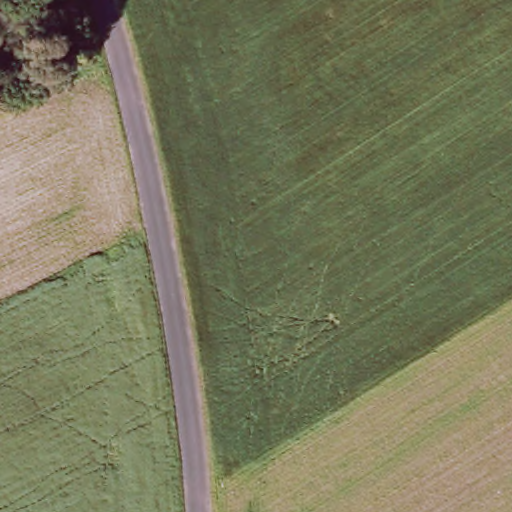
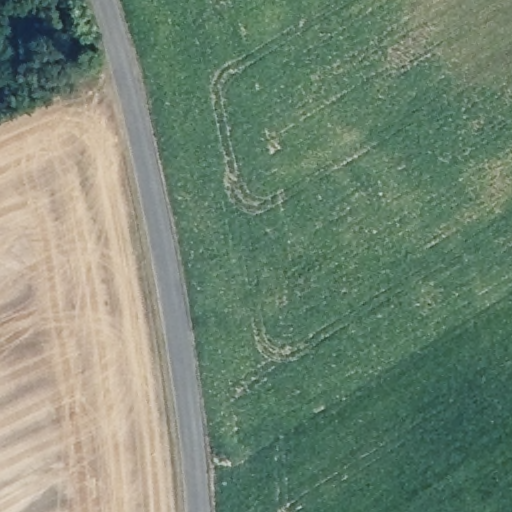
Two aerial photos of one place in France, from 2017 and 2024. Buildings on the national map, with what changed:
unchanged [(2,93),(0,94),(0,89),(2,93)]

